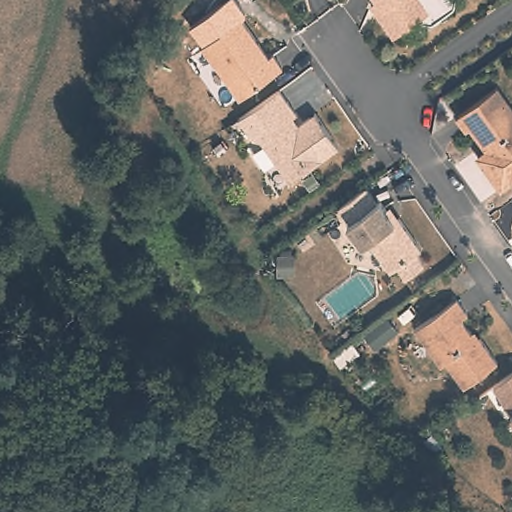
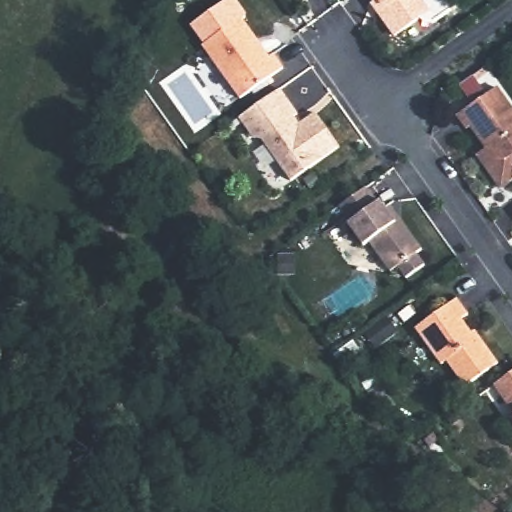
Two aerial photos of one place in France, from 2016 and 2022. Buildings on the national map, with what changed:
unchanged [(398,34),(380,9),(385,5),(382,0),(429,0),(434,7),(398,34)]
unchanged [(244,97),(205,45),(244,17),(271,56),(275,52),(286,67),(244,97)]
unchanged [(512,102),(512,179),(505,185),(480,152),(491,144),(488,139),(483,138),(472,123),(470,125),(460,112),(498,84),(512,102)]
unchanged [(300,112),(291,119),(297,127),(318,112),(342,145),(295,180),(265,139),(257,137),(242,117),(260,104),(282,88),(300,112)]
unchanged [(378,202),(381,200),(396,221),(400,217),(423,248),(418,252),(426,263),(408,277),(400,265),(393,271),(371,241),(365,245),(350,224),(352,222),(341,206),(367,187),(378,202)]
unchanged [(467,315),(460,320),(476,341),(479,339),(497,363),(465,387),(446,362),(441,366),(415,330),(455,299),(467,315)]
unchanged [(508,402),(512,399),(512,407),(508,402)]

